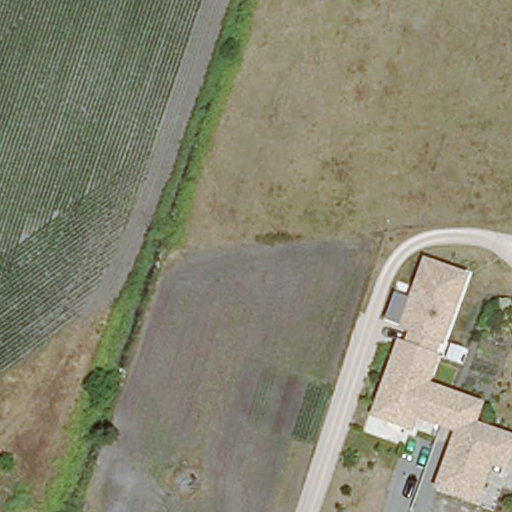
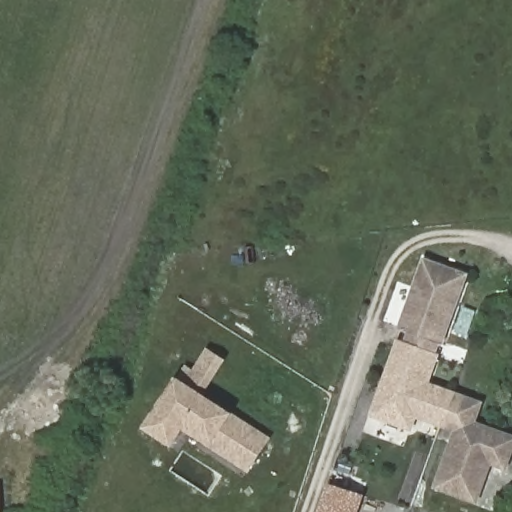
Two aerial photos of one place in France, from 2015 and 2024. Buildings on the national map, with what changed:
unchanged [(445,342),(441,340),(436,354),(439,356),(429,384),(483,404),(475,423),(512,437),(512,454),(507,467),(492,462),(478,500),(439,486),(460,430),(423,416),(425,412),(419,410),(413,427),(373,412),(399,341),(410,345),(415,331),(405,327),(417,293),(421,295),(423,289),(419,287),(429,261),(469,276),(445,342)]
new [(207,395),(179,377),(187,366),(193,370),(207,348),(227,362),(207,395)]
new [(249,472),(185,432),(174,448),(145,428),(179,377),(207,395),(235,413),(272,438),(249,472)]
new [(366,496),(360,512),(320,512),(331,482),(366,496)]

